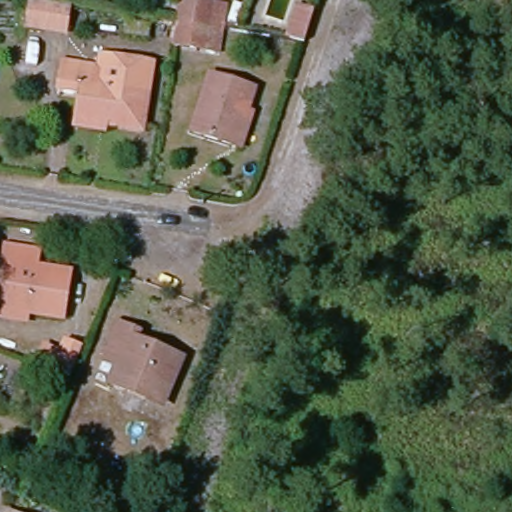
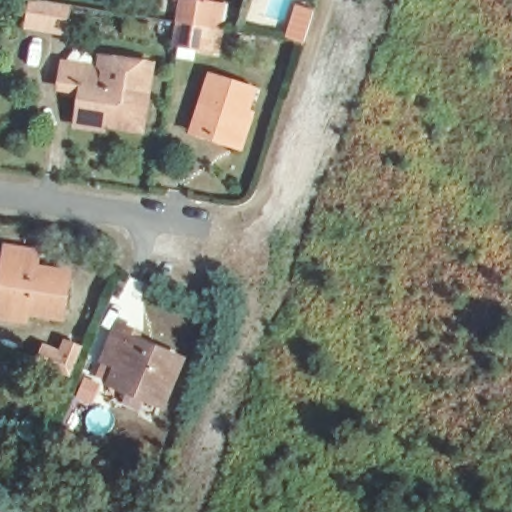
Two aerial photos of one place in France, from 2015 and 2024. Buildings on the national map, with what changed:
unchanged [(51,30),(30,28),(31,0),(42,0),(56,2),(69,4),(66,32),(51,30)]
unchanged [(204,0),(221,2),(218,28),(215,52),(181,49),(183,23),(186,0),(204,0)]
unchanged [(298,0),(309,0),(319,3),(310,33),(288,30),(298,0)]
unchanged [(74,128),(75,115),(78,89),(57,85),(59,68),(101,70),(101,59),(147,65),(138,131),(104,125),(103,131),(74,128)]
unchanged [(246,148),(233,145),(194,133),(210,75),(255,89),(249,112),(255,114),(246,148)]
unchanged [(2,313),(5,296),(8,244),(41,247),(39,272),(48,274),(48,267),(71,268),(69,313),(30,310),(30,316),(2,313)]
unchanged [(151,395),(153,387),(124,374),(128,365),(113,357),(127,323),(143,331),(139,339),(187,359),(168,404),(151,395)]
unchanged [(47,358),(54,341),(70,349),(75,338),(91,345),(79,373),(47,358)]
unchanged [(3,510),(7,512),(2,512),(3,510)]

